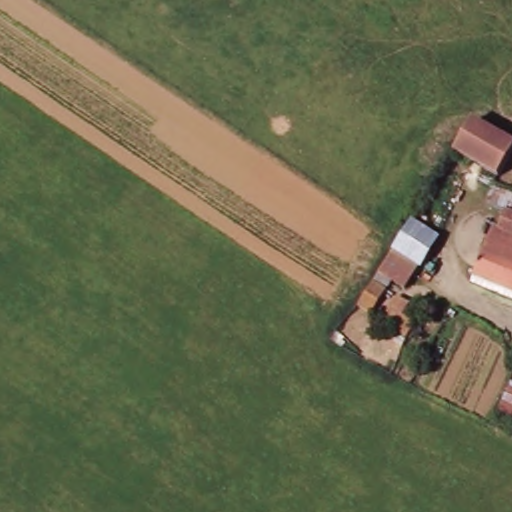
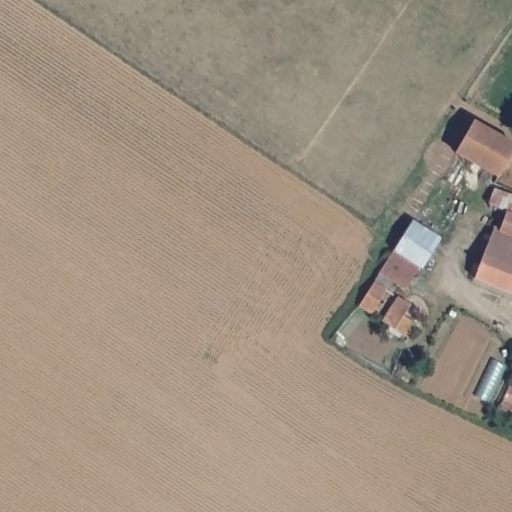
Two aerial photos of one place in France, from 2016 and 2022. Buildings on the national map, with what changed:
unchanged [(473,121),(512,142),(512,167),(505,179),(454,152),(473,121)]
unchanged [(473,279),(496,225),(504,229),(512,213),(512,295),(473,279)]
unchanged [(429,271),(418,289),(394,276),(389,285),(391,289),(377,312),(361,303),(377,276),(393,249),(429,271)]
unchanged [(407,303),(403,310),(418,319),(407,338),(382,323),(397,297),(407,303)]
unchanged [(498,417),(512,383),(512,423),(498,417)]

